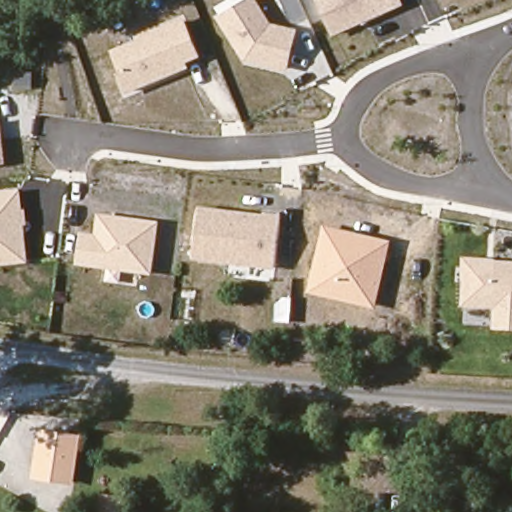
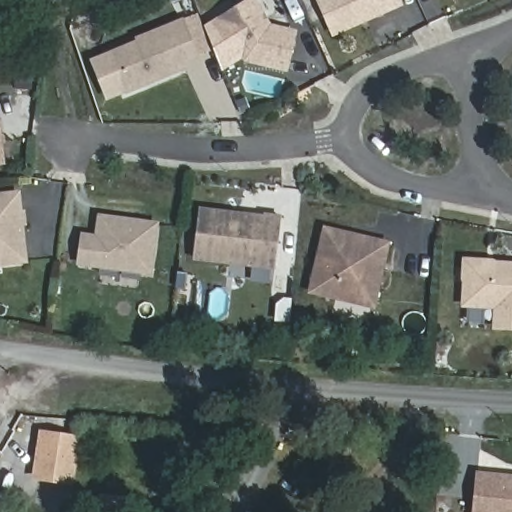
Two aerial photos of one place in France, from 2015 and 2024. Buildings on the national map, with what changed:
unchanged [(245,62),(217,17),(246,0),(258,0),(275,25),(299,30),(290,70),(245,62)]
unchanged [(317,0),(402,0),(403,4),(332,37),(317,0)]
unchanged [(185,64),(188,68),(130,91),(113,50),(134,40),(133,39),(187,17),(203,56),(185,64)]
unchanged [(0,121),(4,164),(0,164),(0,121)]
unchanged [(22,206),(27,206),(28,225),(23,225),(25,262),(0,265),(0,192),(21,190),(22,206)]
unchanged [(275,268),(192,260),(198,206),(282,215),(275,268)]
unchanged [(150,275),(122,272),(121,281),(107,280),(107,269),(76,265),(79,233),(96,236),(101,215),(159,221),(150,275)]
unchanged [(375,307),(310,292),(325,225),(392,239),(375,307)]
unchanged [(494,307),(461,306),(465,259),(512,263),(512,330),(493,328),(494,307)]
new [(282,279),(295,280),(291,323),(278,322),(282,279)]
unchanged [(75,488),(31,482),(40,430),(82,437),(75,488)]
new [(476,470),(512,474),(512,512),(473,512),(476,470)]
unchanged [(100,492),(130,495),(129,512),(98,512),(100,492)]

